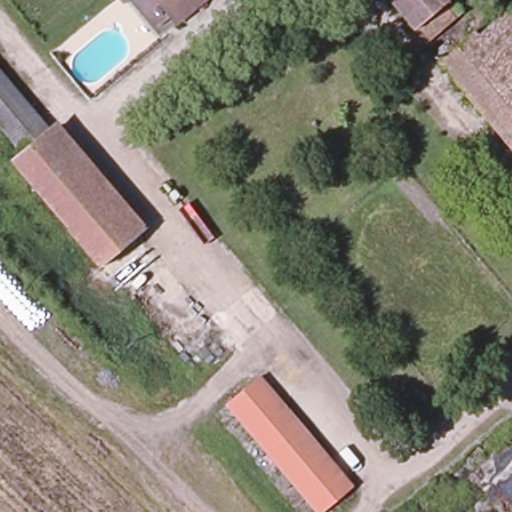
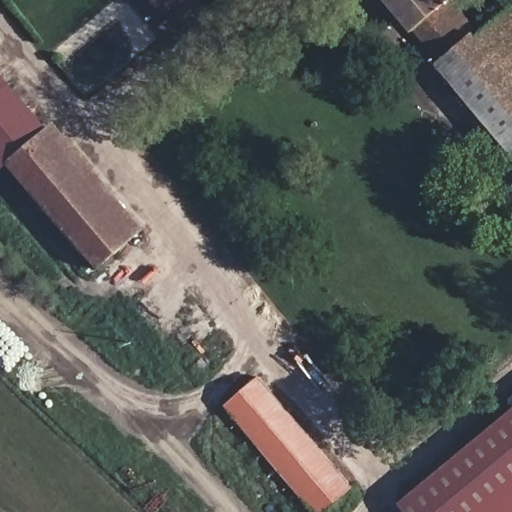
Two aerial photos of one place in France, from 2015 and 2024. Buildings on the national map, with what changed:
unchanged [(172,0),(208,0),(189,16),(172,0)]
unchanged [(455,0),(467,14),(424,50),(380,0),(455,0)]
unchanged [(512,17),(512,146),(448,72),(512,17)]
unchanged [(12,161),(22,152),(0,124),(0,63),(51,128),(60,119),(150,225),(104,265),(12,161)]
new [(12,161),(1,170),(0,169),(0,124),(22,152),(12,161)]
unchanged [(270,377),(355,484),(328,512),(317,512),(235,419),(225,407),(270,377)]
new [(512,408),(512,512),(408,512),(399,501),(512,408)]

